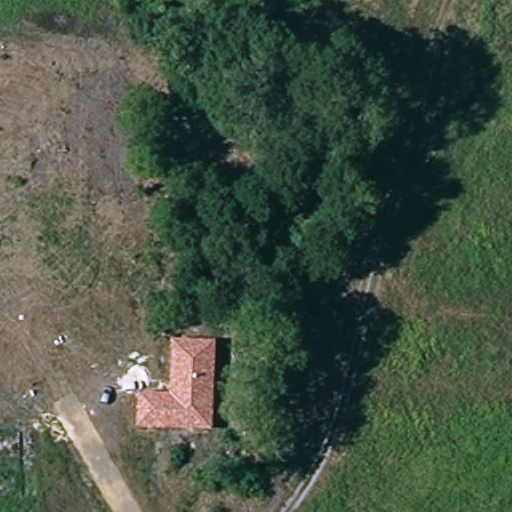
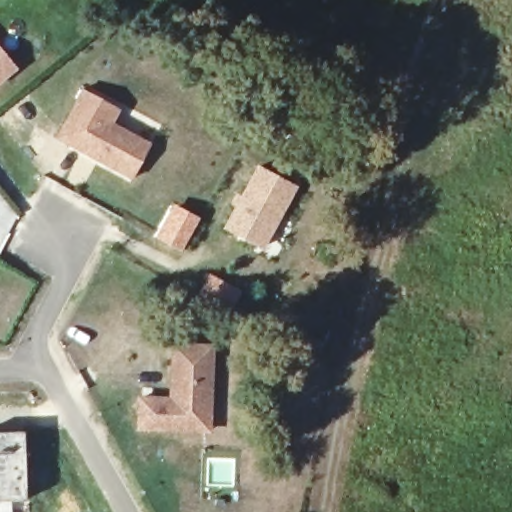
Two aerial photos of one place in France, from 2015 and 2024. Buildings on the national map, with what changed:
new [(0,82),(0,53),(14,70),(0,82)]
new [(82,90),(125,112),(118,126),(152,144),(134,178),(58,139),(82,90)]
new [(258,164),(299,187),(264,252),(223,227),(234,207),(229,205),(236,193),(241,195),(258,164)]
unchanged [(214,343),(211,433),(135,430),(136,395),(167,395),(169,342),(214,343)]
new [(25,499),(0,500),(0,431),(22,431),(25,499)]

